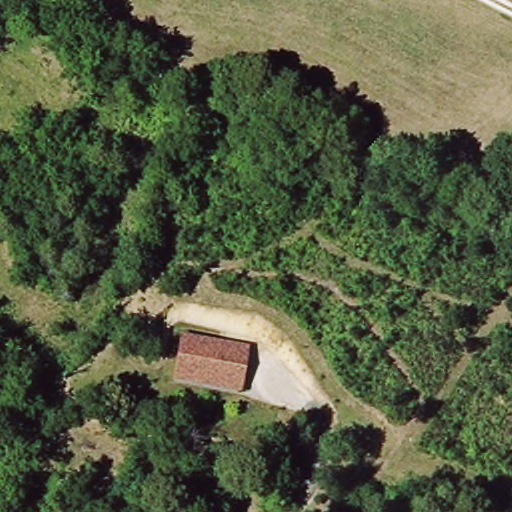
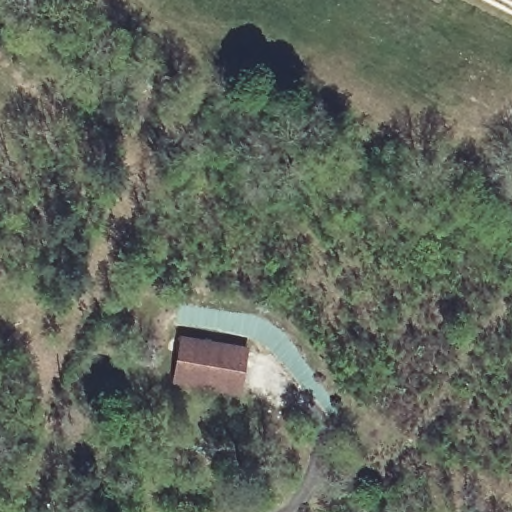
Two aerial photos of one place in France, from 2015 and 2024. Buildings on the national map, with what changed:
unchanged [(238,393),(173,384),(180,342),(244,351),(238,393)]

